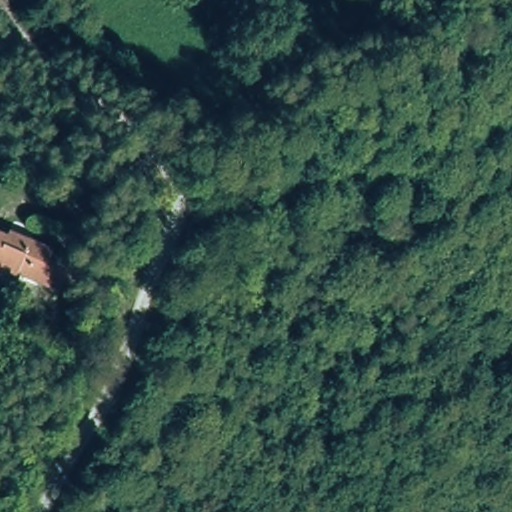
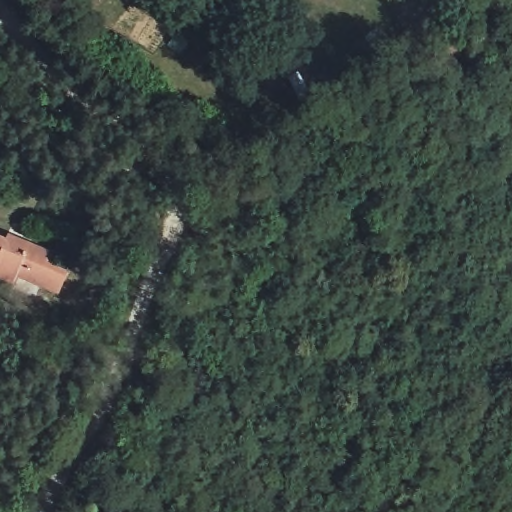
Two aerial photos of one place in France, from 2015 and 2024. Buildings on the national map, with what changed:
unchanged [(74,265),(65,296),(24,279),(19,287),(0,280),(0,238),(12,242),(14,237),(74,265)]

